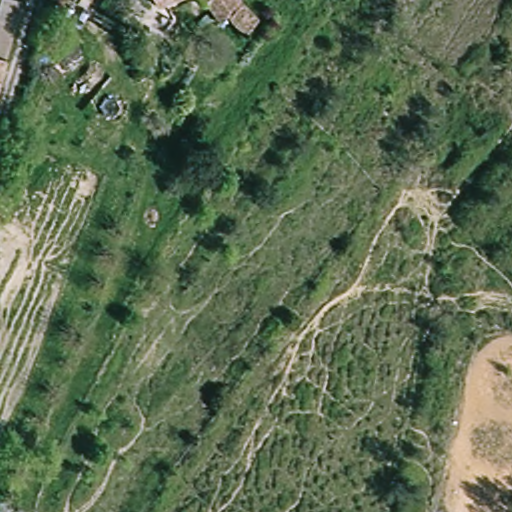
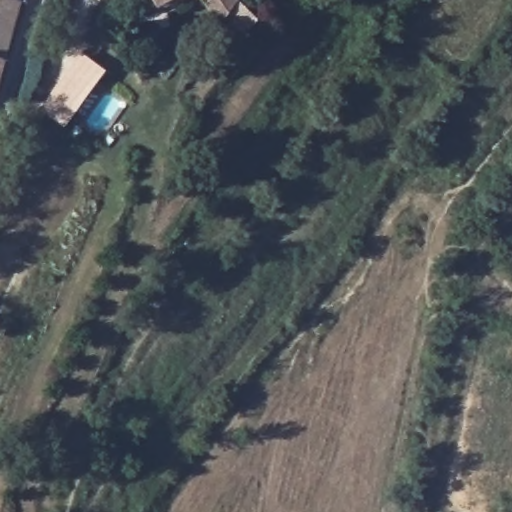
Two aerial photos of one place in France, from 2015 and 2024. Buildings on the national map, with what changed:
unchanged [(17,0),(3,50),(0,50),(0,0),(17,0)]
unchanged [(150,0),(166,0),(154,6),(150,0)]
unchanged [(226,27),(210,6),(205,0),(232,0),(241,15),(226,27)]
unchanged [(3,50),(0,60),(0,50),(3,50)]
new [(63,126),(39,109),(79,52),(103,70),(63,126)]

